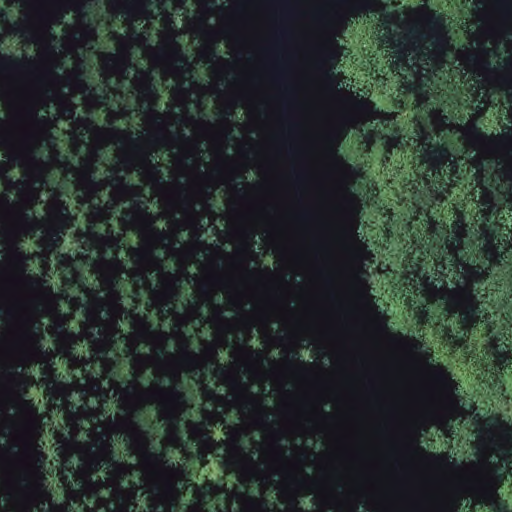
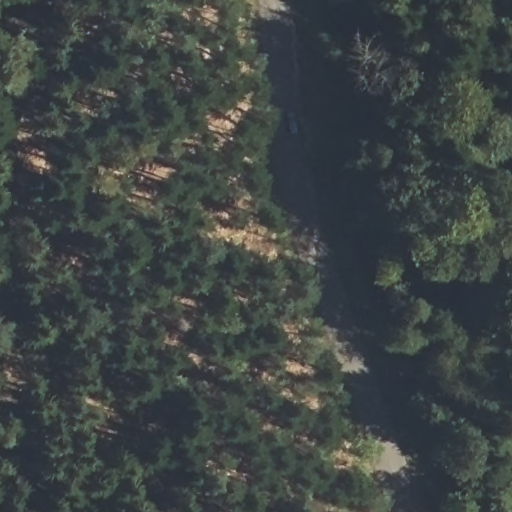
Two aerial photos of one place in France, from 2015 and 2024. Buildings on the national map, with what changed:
unchanged [(353,3),(330,9),(328,0),(352,0),(353,3)]

